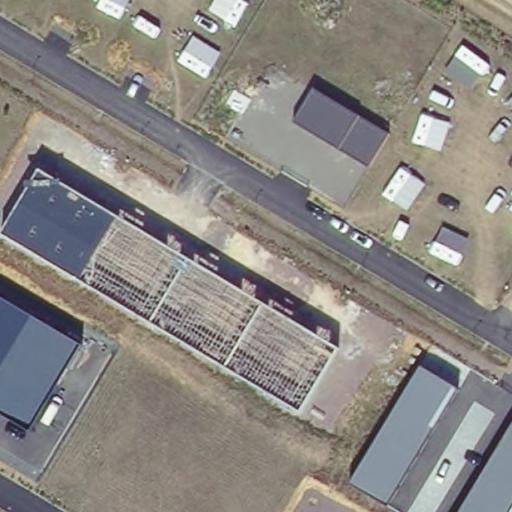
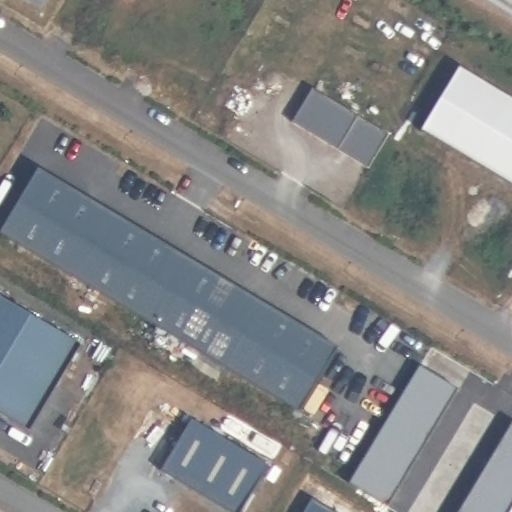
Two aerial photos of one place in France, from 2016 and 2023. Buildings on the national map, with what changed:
new [(421,132),(460,68),(512,99),(512,187),(421,132)]
unchanged [(368,166),(292,122),(312,87),(387,132),(368,166)]
unchanged [(301,412),(2,232),(40,167),(340,346),(301,412)]
unchanged [(0,410),(0,296),(82,344),(31,427),(0,410)]
unchanged [(386,503),(351,482),(420,365),(456,388),(386,503)]
new [(192,419),(270,465),(241,512),(229,512),(160,470),(192,419)]
unchanged [(458,512),(512,425),(512,512),(458,512)]
new [(334,512),(304,512),(312,499),(334,512)]

